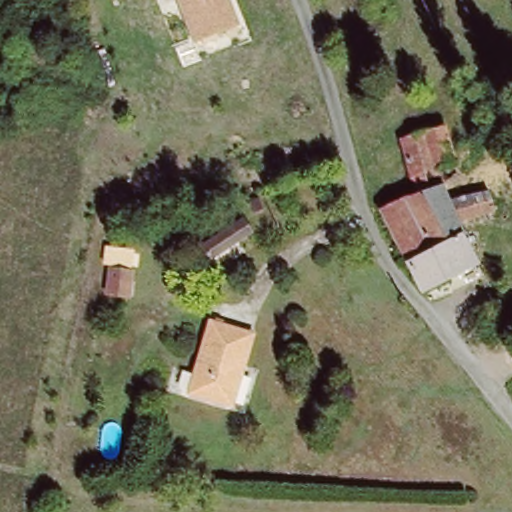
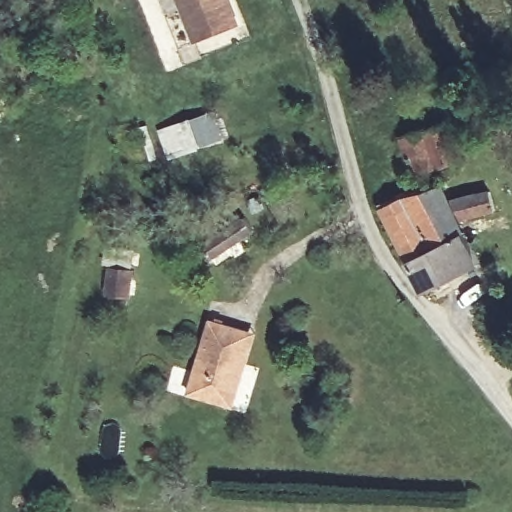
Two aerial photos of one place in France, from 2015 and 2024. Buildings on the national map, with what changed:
unchanged [(234,27),(191,39),(177,0),(225,0),(234,27)]
new [(170,158),(160,129),(217,110),(228,137),(170,158)]
unchanged [(401,147),(447,135),(456,165),(459,173),(454,175),(458,185),(416,198),(401,147)]
unchanged [(467,202),(487,196),(493,214),(460,227),(482,270),(424,296),(419,290),(391,214),(416,198),(458,185),(467,202)]
unchanged [(255,234),(210,259),(197,241),(244,218),(255,234)]
unchanged [(133,271),(129,299),(110,294),(115,266),(133,271)]
unchanged [(185,393),(210,319),(246,334),(255,338),(244,371),(231,412),(185,393)]

